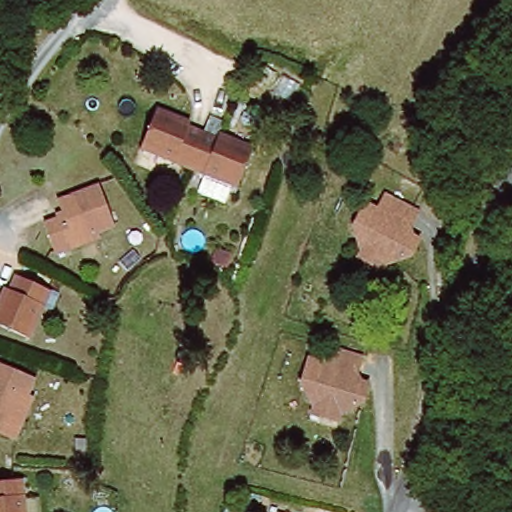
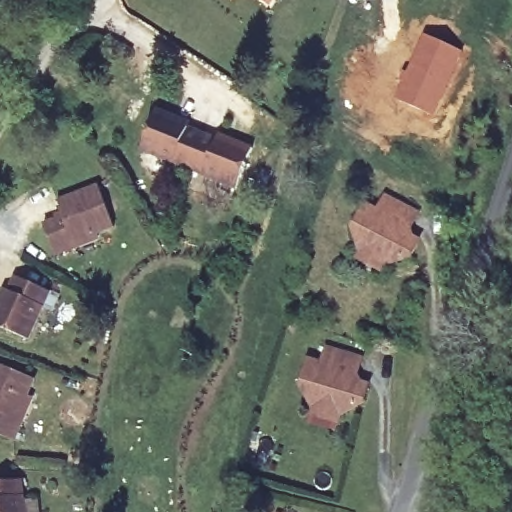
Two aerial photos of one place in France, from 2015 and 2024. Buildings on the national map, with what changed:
new [(423,32),(465,51),(434,116),(392,97),(423,32)]
unchanged [(226,145),(229,140),(247,149),(230,189),(133,149),(150,108),(169,116),(168,120),(226,145)]
unchanged [(49,254),(38,222),(58,215),(52,199),(94,185),(109,227),(68,242),(70,247),(49,254)]
unchanged [(356,254),(349,230),(360,207),(374,214),(382,197),(414,215),(402,237),(414,244),(405,261),(380,267),(375,275),(352,263),(356,254)]
unchanged [(13,276),(47,292),(25,340),(0,328),(0,305),(1,306),(13,276)]
unchanged [(309,407),(297,385),(306,358),(318,362),(322,347),(358,357),(351,381),(365,385),(359,403),(337,415),(334,426),(306,418),(309,407)]
unchanged [(31,380),(14,419),(20,421),(10,442),(0,438),(0,366),(31,380)]
unchanged [(16,479),(20,512),(0,512),(0,480),(16,479)]

